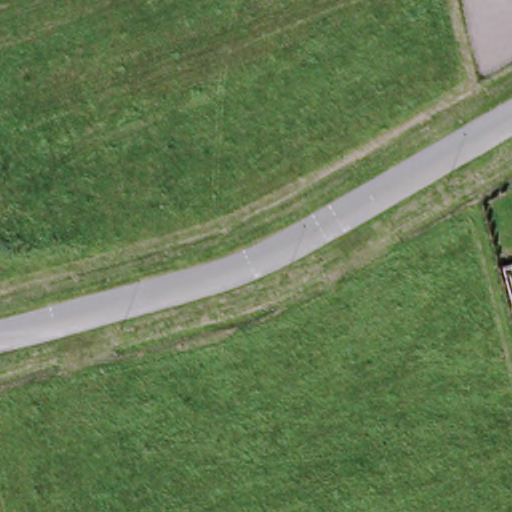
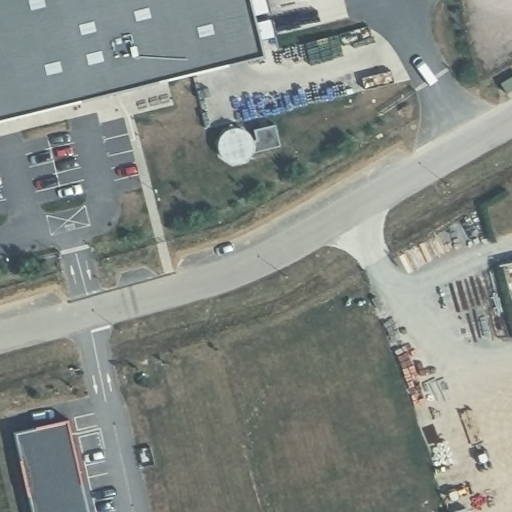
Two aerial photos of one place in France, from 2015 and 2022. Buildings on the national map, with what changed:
new [(264,54),(0,117),(0,0),(264,0),(267,13),(255,16),(257,23),(269,21),(273,37),(261,40),(264,54)]
new [(274,126),(279,148),(257,153),(252,131),(274,126)]

